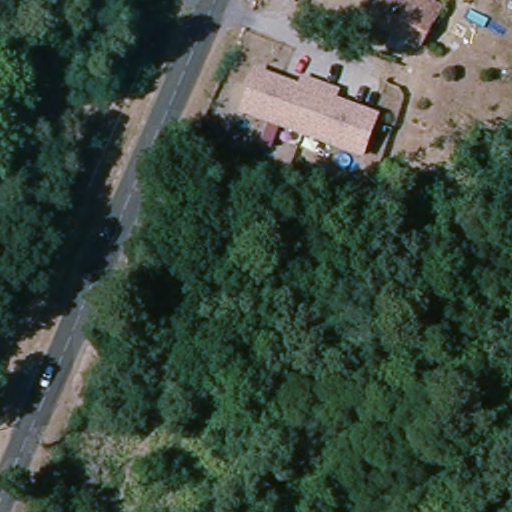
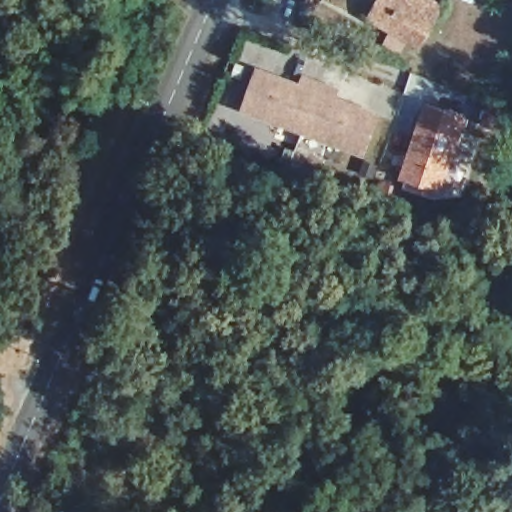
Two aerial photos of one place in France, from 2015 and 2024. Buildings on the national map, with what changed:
unchanged [(423,0),(436,8),(414,46),(367,19),(378,0),(423,0)]
unchanged [(463,0),(480,0),(477,8),(463,0)]
unchanged [(498,0),(508,0),(506,4),(498,0)]
unchanged [(241,113),(257,68),(298,84),(301,76),(341,91),(339,97),(380,113),(364,158),(241,113)]
new [(468,117),(441,195),(398,182),(424,104),(468,117)]

